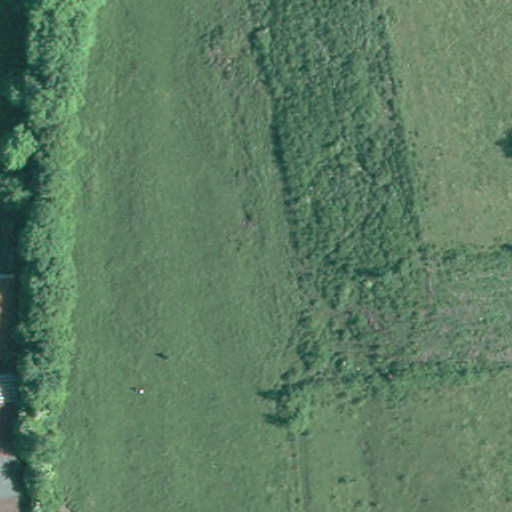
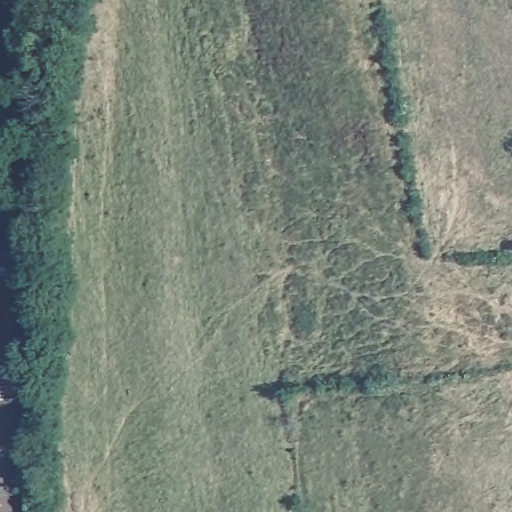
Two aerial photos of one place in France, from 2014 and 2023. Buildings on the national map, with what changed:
unchanged [(18,275),(20,354),(0,354),(0,275),(18,275)]
unchanged [(16,380),(17,407),(0,407),(0,380),(16,380)]
unchanged [(17,407),(20,463),(0,463),(0,407),(17,407)]
unchanged [(20,463),(21,502),(0,503),(0,463),(20,463)]
unchanged [(21,502),(21,512),(0,512),(0,503),(21,502)]

